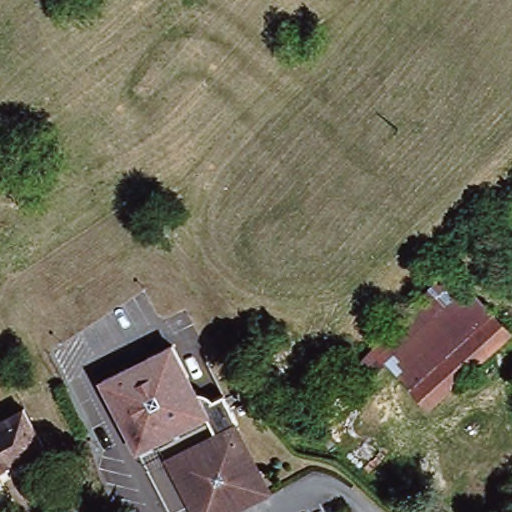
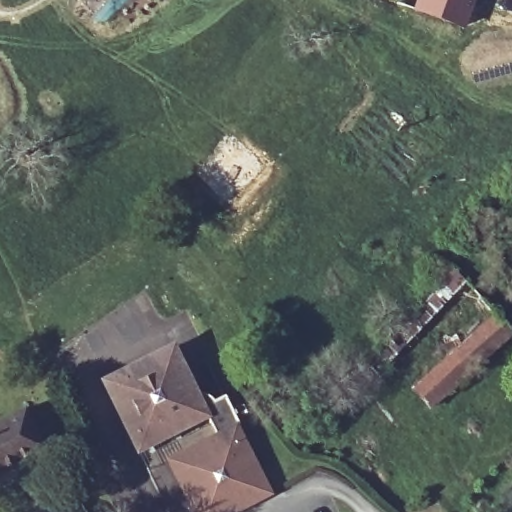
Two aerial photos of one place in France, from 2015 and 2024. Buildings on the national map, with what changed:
new [(420,8),(422,0),(471,0),(462,22),(420,8)]
unchanged [(494,225),(512,207),(512,240),(496,226),(494,225)]
unchanged [(446,268),(509,335),(448,388),(427,406),(383,362),(371,347),(446,268)]
unchanged [(175,344),(198,391),(215,401),(222,398),(233,424),(214,433),(208,420),(135,457),(99,381),(175,344)]
unchanged [(312,410),(371,347),(383,362),(326,425),(312,410)]
unchanged [(15,412),(37,449),(0,469),(0,421),(15,412)]
unchanged [(165,458),(233,424),(267,491),(228,512),(193,512),(165,458)]

